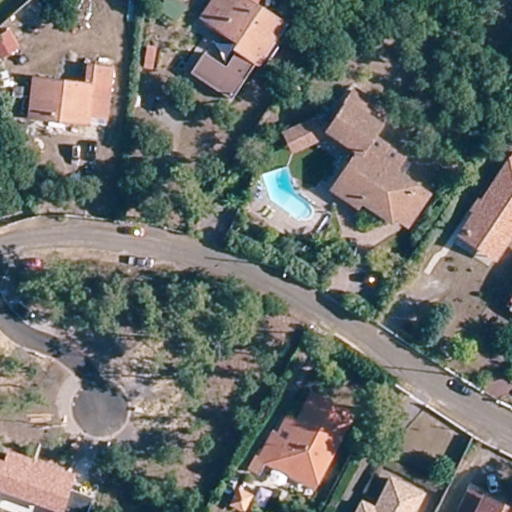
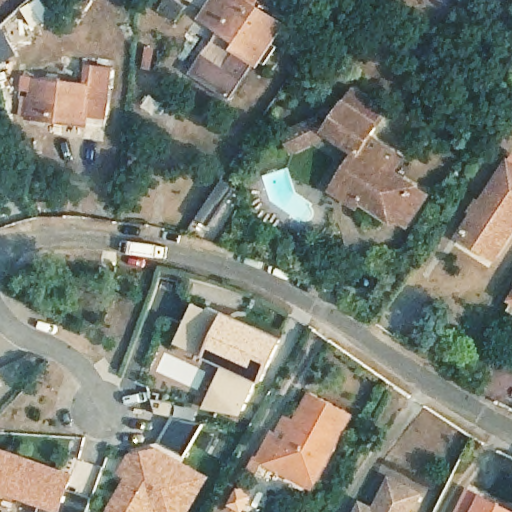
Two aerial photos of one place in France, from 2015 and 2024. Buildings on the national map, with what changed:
unchanged [(257,54),(231,93),(191,66),(205,46),(226,60),(239,41),(242,36),(203,9),(209,0),(257,0),(282,17),(257,54)]
unchanged [(2,23),(12,40),(0,49),(0,25),(2,23)]
demolished [(177,31),(172,66),(140,62),(145,28),(177,31)]
unchanged [(87,86),(90,66),(112,70),(106,117),(86,114),(85,123),(30,116),(35,79),(87,86)]
unchanged [(321,185),(328,175),(349,145),(322,127),(283,145),(275,126),(305,112),(320,122),(337,97),(346,83),(379,106),(370,119),(363,129),(395,150),(383,168),(410,186),(423,195),(402,226),(390,217),(358,196),(352,205),(321,185)]
unchanged [(465,228),(511,158),(512,159),(512,232),(500,252),(497,256),(462,233),(465,228)]
unchanged [(512,302),(510,300),(512,296),(512,302)]
new [(286,339),(267,380),(257,381),(240,420),(206,404),(224,366),(176,344),(195,302),(210,309),(226,311),(286,339)]
unchanged [(265,462),(256,479),(249,475),(257,458),(260,460),(272,435),(280,439),(291,418),(300,424),(314,397),(352,418),(317,482),(312,489),(287,475),(265,462)]
unchanged [(7,450),(74,473),(67,490),(92,499),(87,512),(58,512),(0,491),(0,459),(2,460),(7,450)]
new [(124,473),(132,458),(147,455),(160,454),(166,456),(206,479),(186,512),(113,512),(132,478),(124,473)]
unchanged [(355,512),(360,503),(374,510),(390,479),(422,494),(413,512),(355,512)]
unchanged [(506,512),(463,512),(472,495),(506,512)]
unchanged [(241,512),(232,507),(238,496),(250,502),(245,512),(241,512)]

